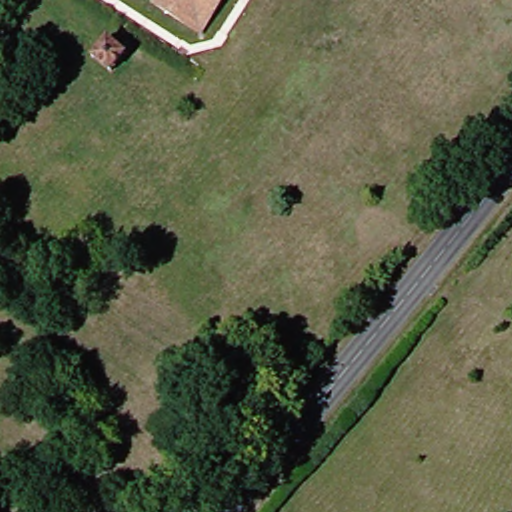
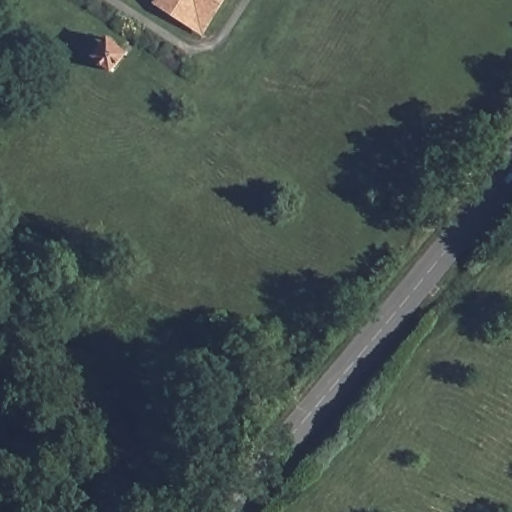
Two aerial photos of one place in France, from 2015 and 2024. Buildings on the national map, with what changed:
unchanged [(210,27),(197,29),(159,4),(161,0),(229,0),(210,27)]
unchanged [(136,53),(120,74),(98,59),(113,38),(136,53)]

